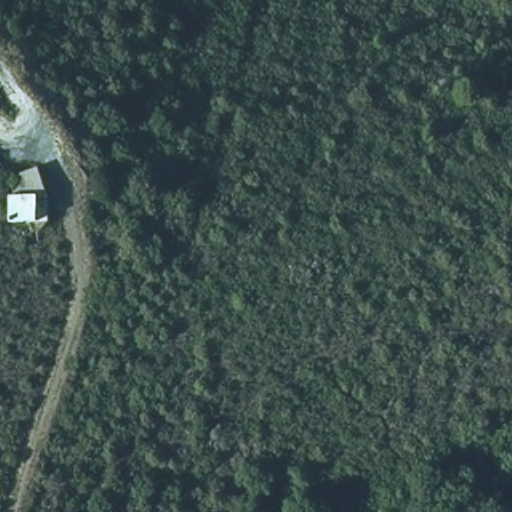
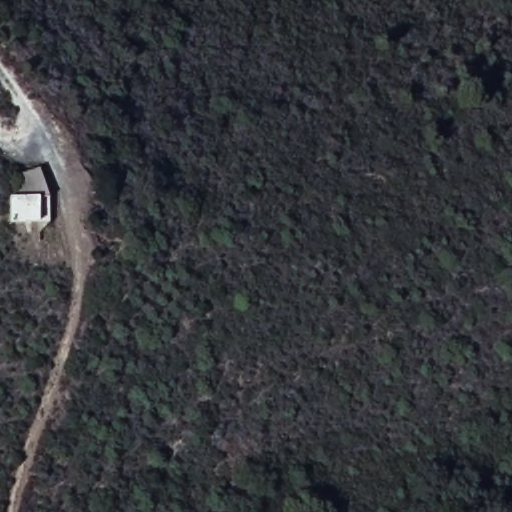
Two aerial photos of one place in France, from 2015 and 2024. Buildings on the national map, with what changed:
unchanged [(8,190),(16,190),(14,167),(39,160),(43,217),(12,217),(8,190)]

